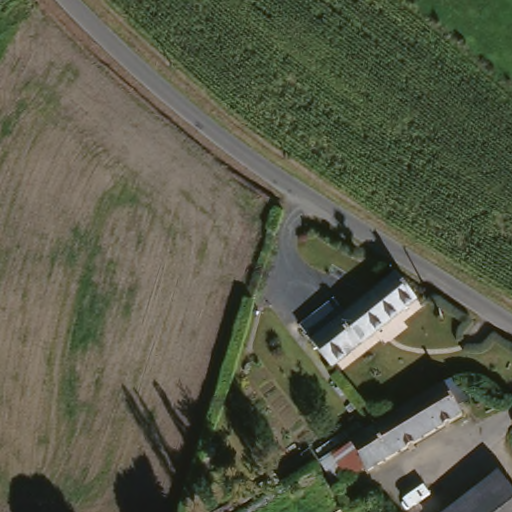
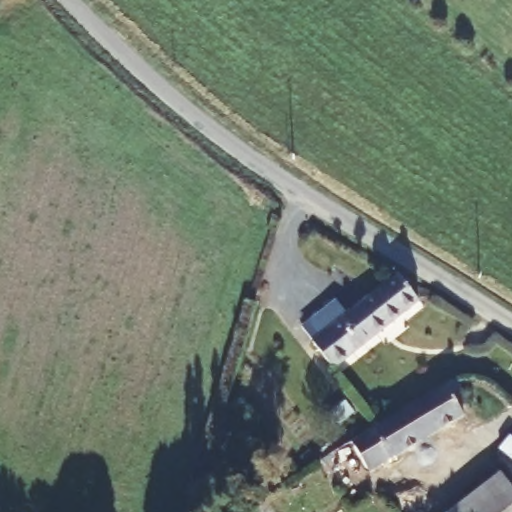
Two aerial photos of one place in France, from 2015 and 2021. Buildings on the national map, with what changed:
unchanged [(401,270),(415,284),(425,297),(337,365),(317,338),(401,270)]
unchanged [(354,360),(362,371),(349,382),(340,370),(354,360)]
unchanged [(320,461),(339,449),(364,434),(434,393),(450,384),(462,402),(446,413),(453,424),(357,479),(355,475),(336,487),(320,461)]
unchanged [(512,512),(454,512),(505,471),(512,482),(512,512)]

